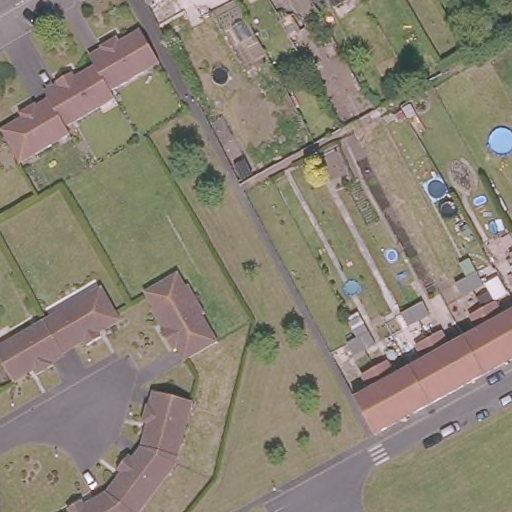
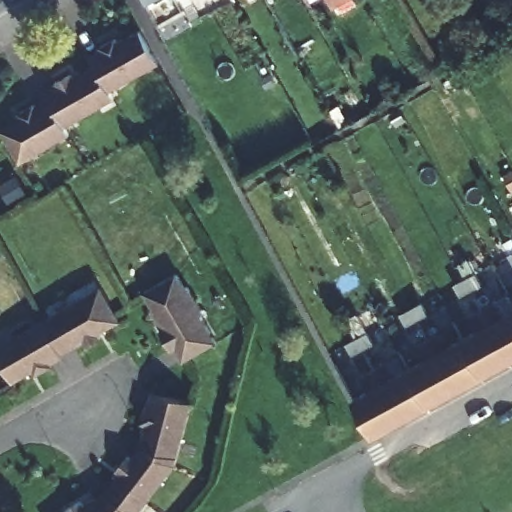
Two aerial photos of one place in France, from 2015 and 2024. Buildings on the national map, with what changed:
unchanged [(333,0),(338,0),(334,2),(333,0)]
unchanged [(90,54),(102,47),(100,43),(115,34),(118,39),(139,26),(158,59),(109,87),(95,62),(90,54)]
unchanged [(109,87),(114,95),(64,124),(49,98),(45,91),(58,84),(56,80),(72,71),(74,74),(95,62),(109,87)]
unchanged [(64,124),(69,132),(19,161),(0,127),(20,115),(19,111),(34,102),(36,106),(49,98),(64,124)]
unchanged [(512,250),(512,259),(509,252),(512,250)]
unchanged [(177,346),(171,349),(159,327),(161,326),(151,308),(154,306),(144,289),(178,270),(186,284),(188,283),(204,311),(201,313),(218,341),(185,360),(177,346)]
unchanged [(454,281),(466,275),(476,270),(483,282),(473,288),(461,294),(454,281)]
unchanged [(104,285),(123,320),(102,332),(104,337),(88,346),(85,342),(76,347),(78,351),(65,358),(43,320),(104,285)]
unchanged [(401,311),(412,305),(422,299),(429,312),(418,318),(407,323),(401,311)]
unchanged [(507,323),(512,320),(512,356),(488,312),(498,306),(507,323)]
unchanged [(512,366),(490,378),(489,379),(470,343),(486,334),(477,318),(488,312),(512,356),(512,366)]
unchanged [(65,358),(53,364),(54,366),(36,375),(33,371),(15,381),(0,355),(0,345),(43,320),(65,358)]
unchanged [(345,342),(358,335),(368,329),(375,342),(365,347),(351,354),(345,342)]
unchanged [(444,336),(453,353),(470,343),(489,379),(462,394),(434,342),(444,336)]
unchanged [(462,394),(435,409),(416,373),(433,364),(424,347),(434,342),(462,394)]
unchanged [(394,364),(403,380),(416,373),(435,409),(408,424),(380,371),(394,364)]
unchanged [(374,396),(364,379),(380,371),(408,424),(380,439),(361,403),(374,396)]
unchanged [(143,444),(149,424),(144,421),(151,404),(156,405),(159,391),(195,403),(176,463),(139,448),(143,444)]
unchanged [(98,495),(101,492),(115,475),(113,473),(125,459),(128,461),(139,448),(176,463),(138,512),(120,512),(98,495)]
unchanged [(120,512),(65,512),(64,509),(78,501),(80,505),(98,495),(120,512)]

